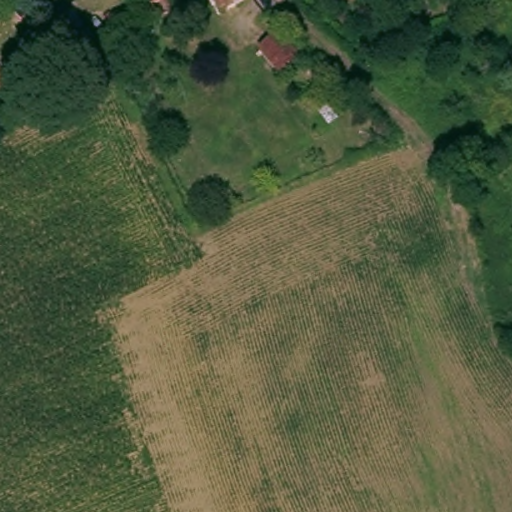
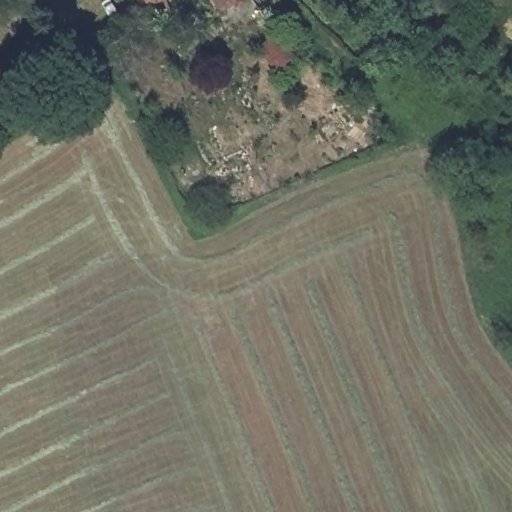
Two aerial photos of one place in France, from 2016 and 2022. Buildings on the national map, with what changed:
unchanged [(235,0),(224,8),(218,0),(235,0)]
unchanged [(278,24),(298,48),(278,65),(258,41),(278,24)]

